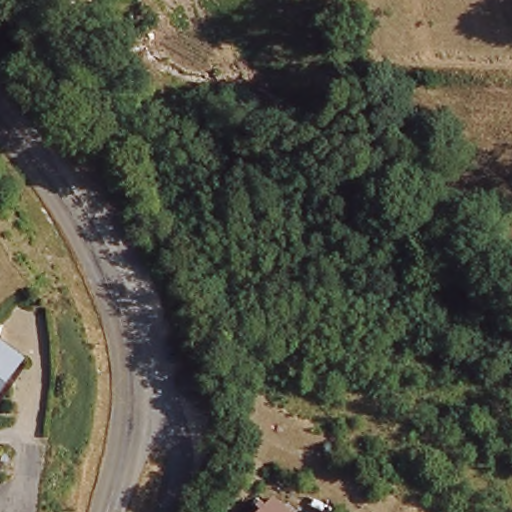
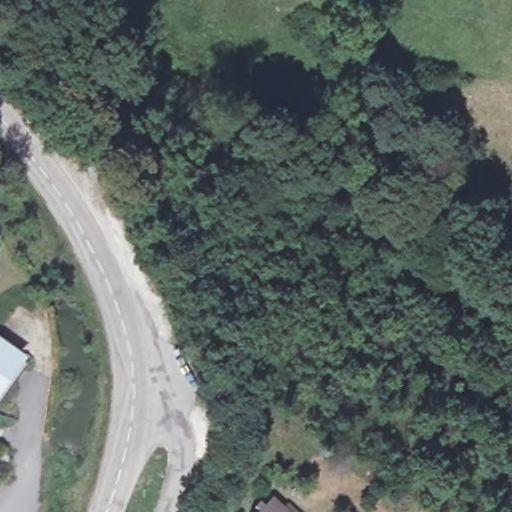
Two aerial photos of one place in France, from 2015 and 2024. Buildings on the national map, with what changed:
unchanged [(0,384),(0,347),(19,364),(0,384)]
unchanged [(271,512),(261,512),(265,507),(271,512)]

